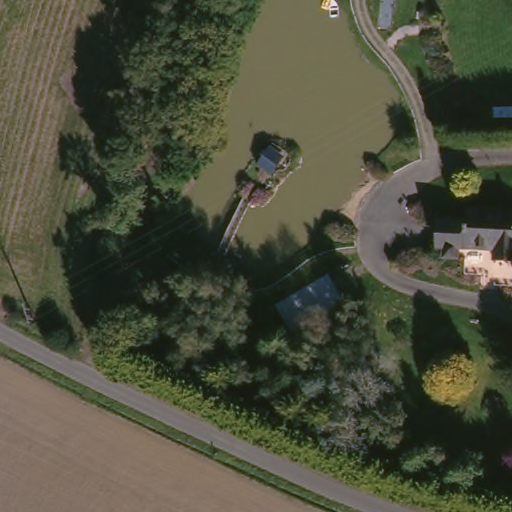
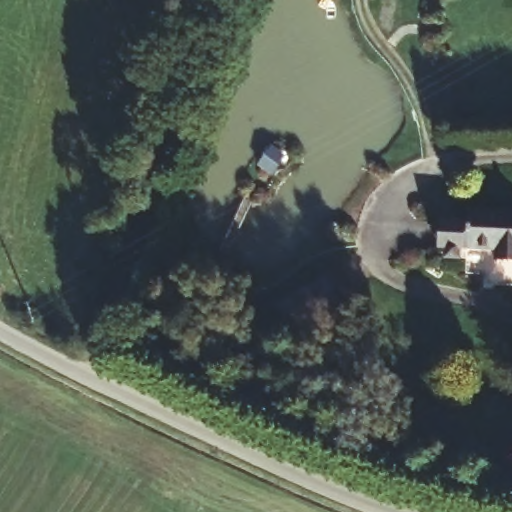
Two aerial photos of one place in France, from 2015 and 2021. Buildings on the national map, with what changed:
unchanged [(461,250),(447,250),(448,239),(444,239),(447,210),(471,211),(471,203),(512,205),(512,254),(496,254),(496,244),(468,242),(462,242),(461,250)]

